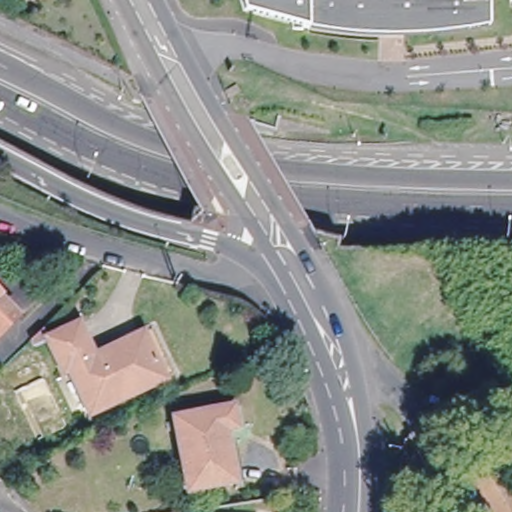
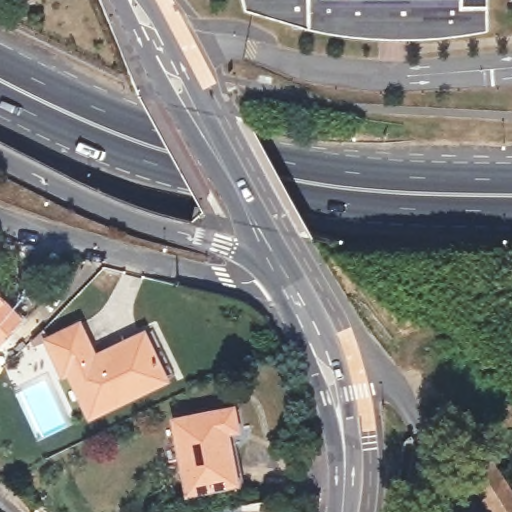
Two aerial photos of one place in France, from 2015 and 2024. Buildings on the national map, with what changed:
unchanged [(317,25),(317,29),(303,25),(253,12),(250,0),(489,0),(489,24),(471,27),(447,30),(410,32),(387,32),(366,32),(343,29),(317,25)]
unchanged [(0,308),(17,326),(0,344),(0,308)]
unchanged [(89,416),(68,372),(63,374),(47,342),(79,329),(93,359),(117,348),(143,337),(146,342),(164,382),(89,416)]
unchanged [(187,485),(176,417),(234,407),(237,428),(225,430),(236,486),(208,491),(189,495),(187,485)]
unchanged [(512,490),(512,512),(496,512),(473,475),(495,462),(512,490)]

